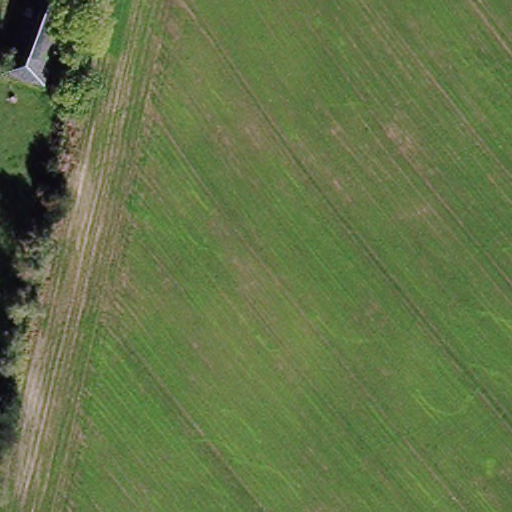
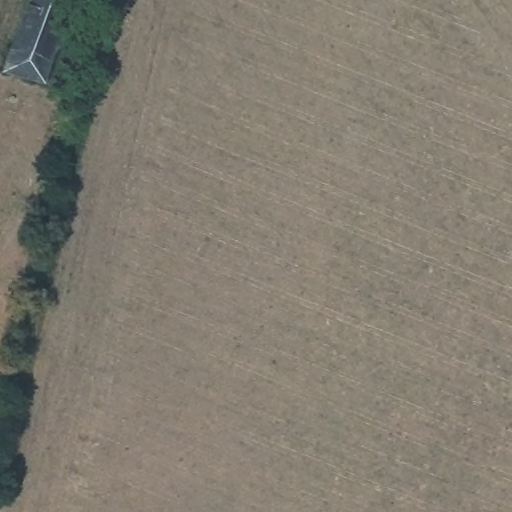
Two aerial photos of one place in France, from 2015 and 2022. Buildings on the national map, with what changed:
unchanged [(4,70),(12,45),(21,47),(36,0),(75,0),(48,84),(4,70)]

